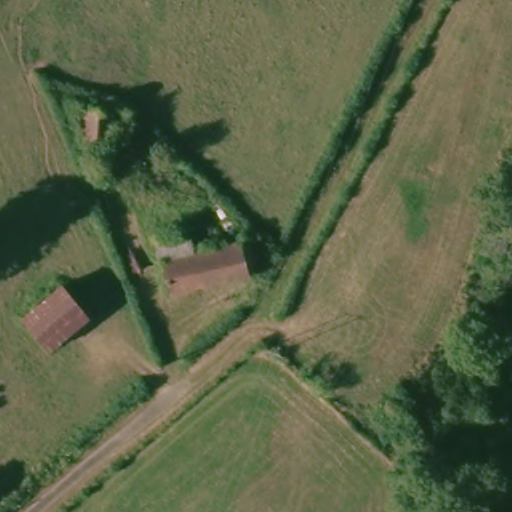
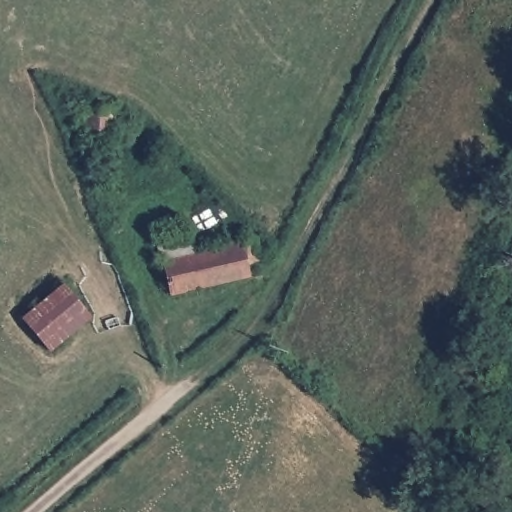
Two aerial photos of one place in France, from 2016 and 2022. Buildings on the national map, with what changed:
unchanged [(88,104),(95,105),(95,96),(112,98),(112,106),(129,109),(130,109),(128,125),(110,124),(108,139),(84,135),(87,105),(88,104)]
unchanged [(247,274),(248,280),(169,294),(164,264),(160,239),(192,234),(195,253),(254,243),(259,272),(247,274)]
unchanged [(60,277),(95,333),(54,359),(19,303),(60,277)]

